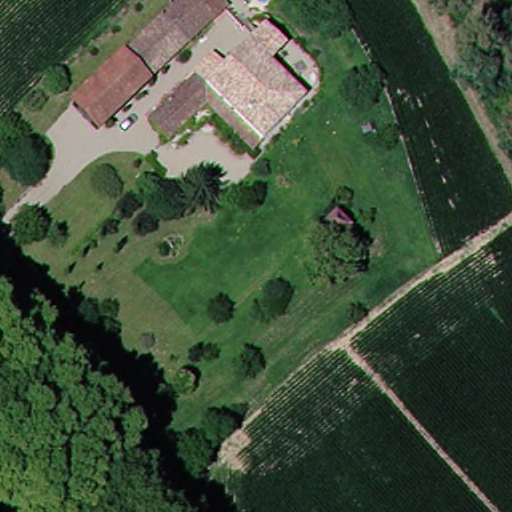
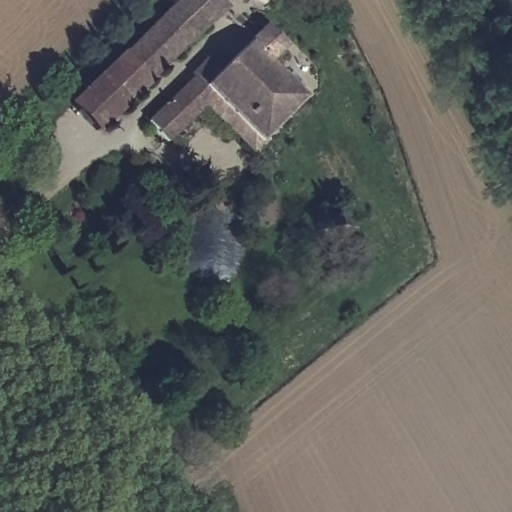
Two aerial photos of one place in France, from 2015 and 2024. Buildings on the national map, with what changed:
unchanged [(205,0),(218,16),(138,84),(115,56),(182,0),(205,0)]
unchanged [(235,34),(249,21),(275,49),(262,61),(298,100),(256,141),(211,88),(199,99),(158,135),(137,111),(231,30),(235,34)]
unchanged [(138,84),(87,126),(65,100),(115,56),(138,84)]
unchanged [(246,151),(199,99),(211,88),(256,141),(246,151)]
unchanged [(333,217),(355,241),(341,254),(319,230),(333,217)]

